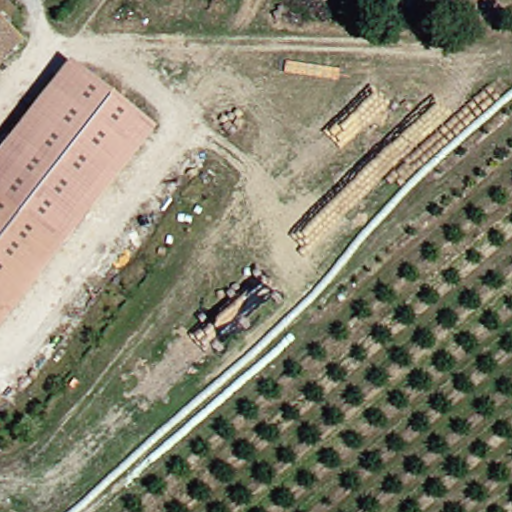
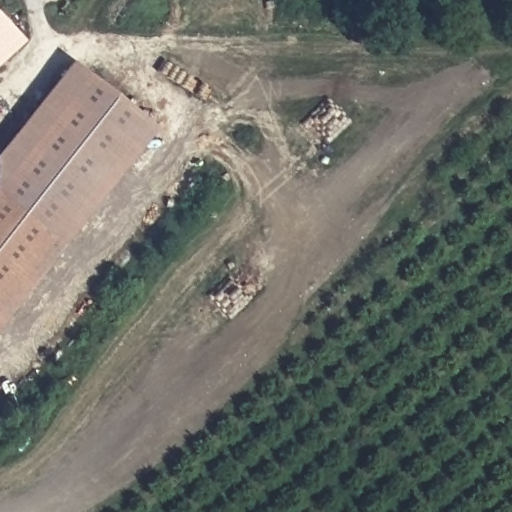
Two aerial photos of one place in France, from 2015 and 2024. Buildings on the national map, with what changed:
unchanged [(9,46),(0,54),(0,35),(9,46)]
unchanged [(93,85),(140,126),(13,276),(0,291),(0,193),(93,85)]

